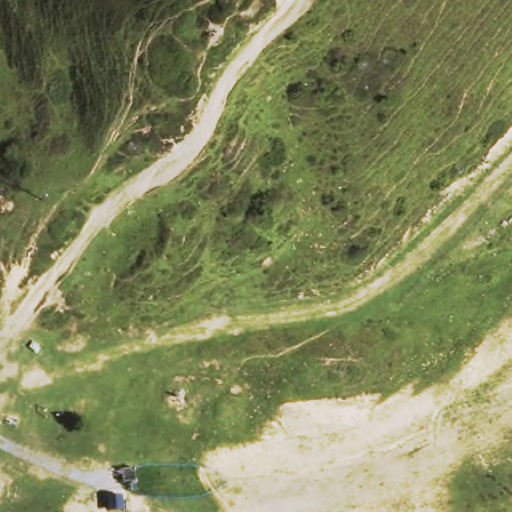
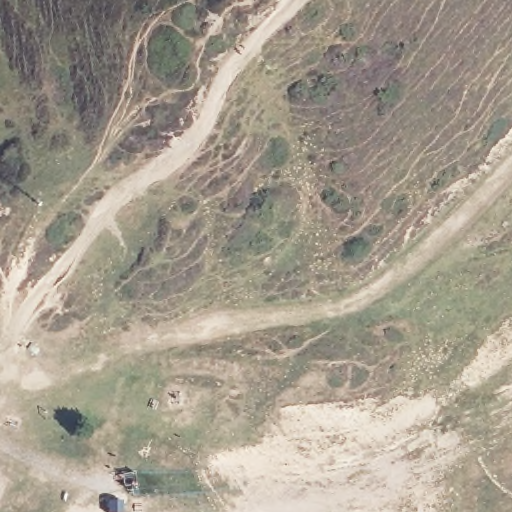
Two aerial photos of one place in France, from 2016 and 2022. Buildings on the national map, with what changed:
[]

